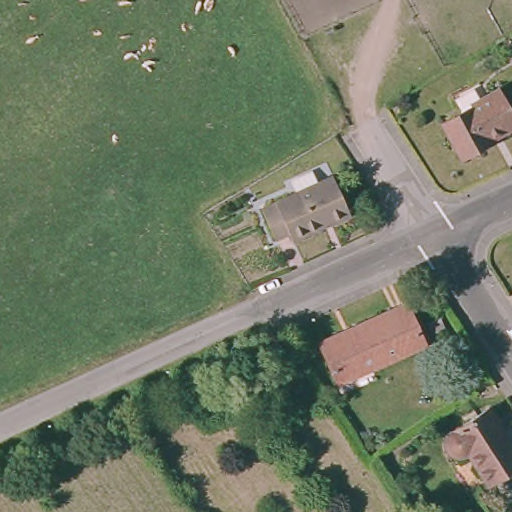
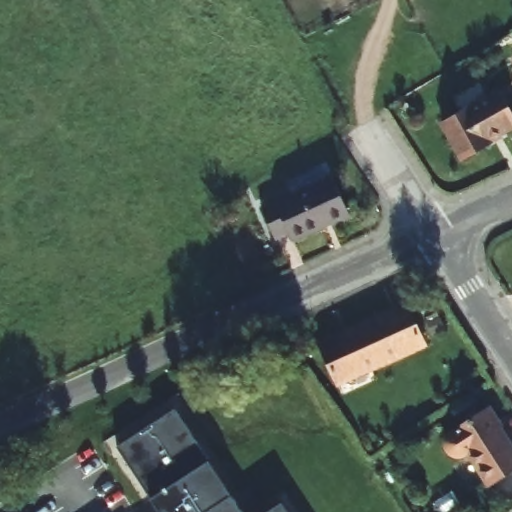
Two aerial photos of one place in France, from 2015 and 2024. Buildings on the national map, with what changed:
unchanged [(512,125),(512,130),(487,142),(490,150),(460,166),(437,124),(496,94),(512,125)]
unchanged [(330,176),(350,217),(297,244),(292,235),(279,241),(262,207),(330,176)]
unchanged [(398,305),(419,349),(335,387),(315,343),(398,305)]
new [(175,407),(249,512),(164,512),(120,442),(175,407)]
unchanged [(460,462),(454,463),(450,462),(447,462),(443,457),(440,452),(439,447),(439,443),(440,440),(447,435),(484,412),(497,431),(492,435),(512,465),(512,475),(487,492),(467,458),(460,462)]
new [(289,512),(272,512),(285,505),(289,512)]

